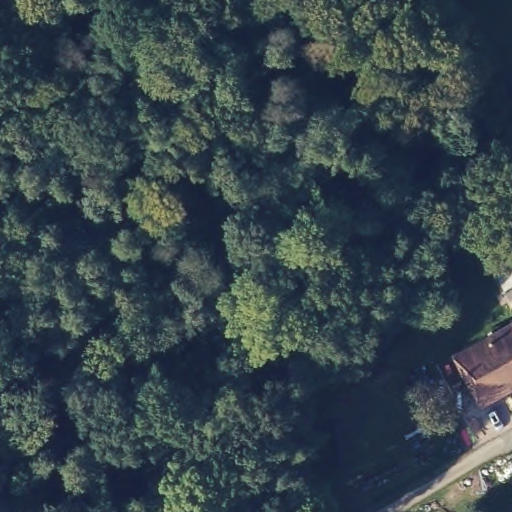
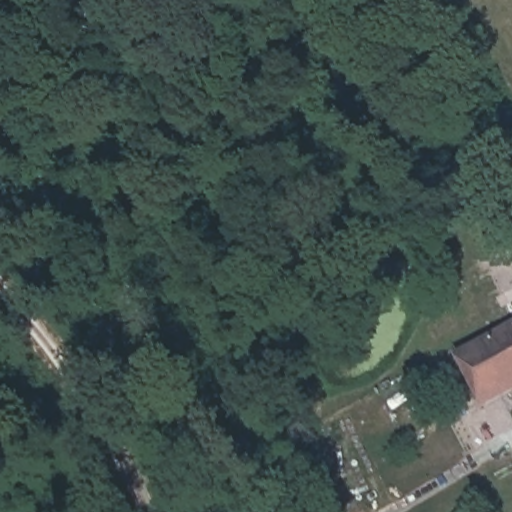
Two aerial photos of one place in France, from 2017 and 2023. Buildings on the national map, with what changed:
unchanged [(459,350),(512,323),(512,381),(480,396),(459,350)]

